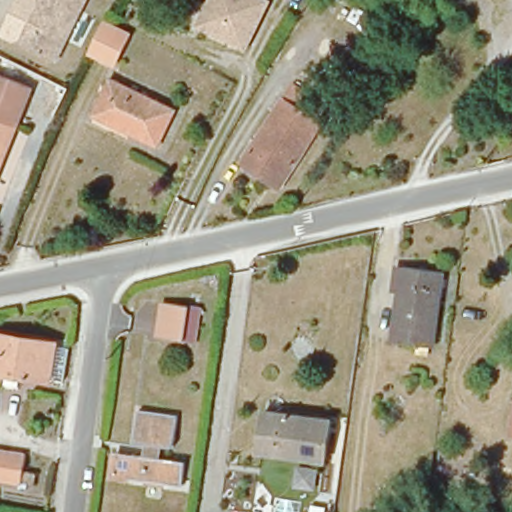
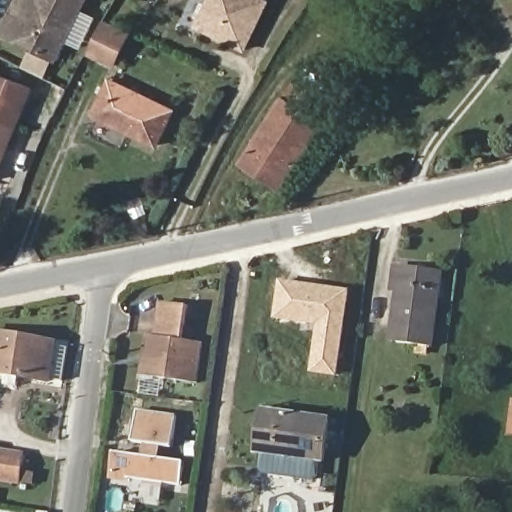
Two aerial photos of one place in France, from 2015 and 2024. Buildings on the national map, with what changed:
unchanged [(38,0),(20,38),(52,54),(58,57),(57,61),(0,36),(0,32),(15,0),(38,0)]
unchanged [(84,0),(58,57),(52,54),(20,38),(38,0),(84,0)]
unchanged [(272,0),(248,52),(194,27),(207,0),(272,0)]
unchanged [(115,68),(88,56),(104,18),(133,32),(115,68)]
unchanged [(360,47),(383,19),(386,22),(395,29),(372,56),(367,52),(360,47)]
unchanged [(145,133),(118,120),(96,110),(114,73),(136,83),(163,97),(177,104),(159,140),(145,133)]
unchanged [(33,90),(0,167),(0,75),(33,90)]
unchanged [(281,187),(248,167),(241,162),(295,75),(302,79),(336,101),(281,187)]
unchanged [(396,315),(404,257),(423,260),(412,338),(406,337),(393,335),(396,315)]
unchanged [(436,341),(412,338),(423,260),(447,263),(436,341)]
new [(312,375),(319,325),(275,319),(280,280),(352,290),(339,379),(312,375)]
demolished [(154,328),(158,293),(183,296),(179,332),(154,328)]
new [(199,384),(142,376),(147,333),(157,334),(161,299),(186,302),(195,303),(190,339),(205,342),(199,384)]
unchanged [(56,374),(0,368),(0,330),(61,337),(56,374)]
unchanged [(118,443),(134,446),(151,448),(153,436),(136,434),(141,401),(182,407),(177,439),(163,437),(161,449),(193,453),(189,483),(130,475),(114,472),(118,443)]
unchanged [(309,450),(284,447),(262,444),(269,404),(290,406),(315,409),(334,412),(329,453),(309,450)]
unchanged [(12,481),(0,480),(0,449),(17,452),(12,481)]

